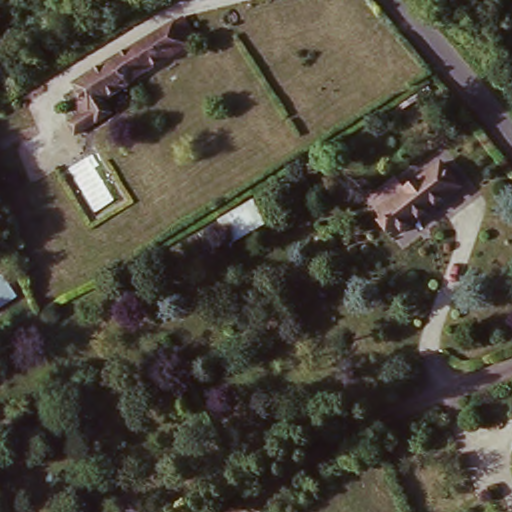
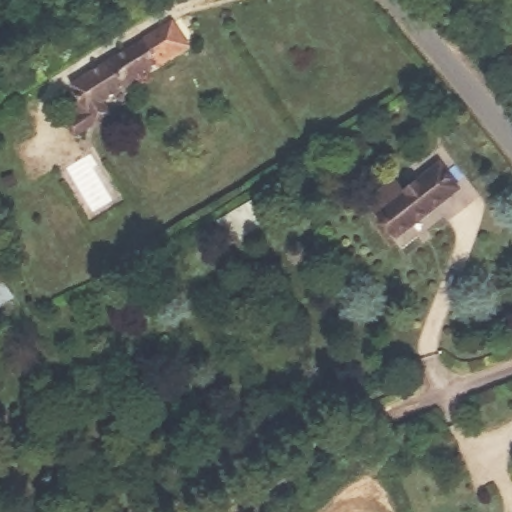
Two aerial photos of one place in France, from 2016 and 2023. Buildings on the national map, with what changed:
unchanged [(129,88),(107,102),(113,112),(85,127),(70,102),(75,99),(66,84),(169,24),(182,16),(197,36),(183,45),(125,82),(129,88)]
unchanged [(440,167),(460,188),(396,238),(378,215),(440,167)]
unchanged [(15,300),(0,310),(0,278),(15,300)]

